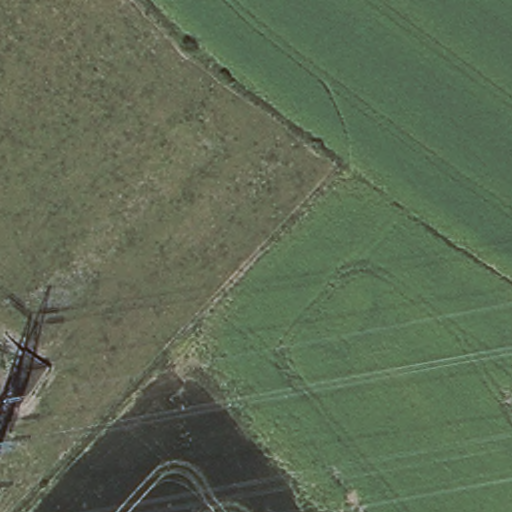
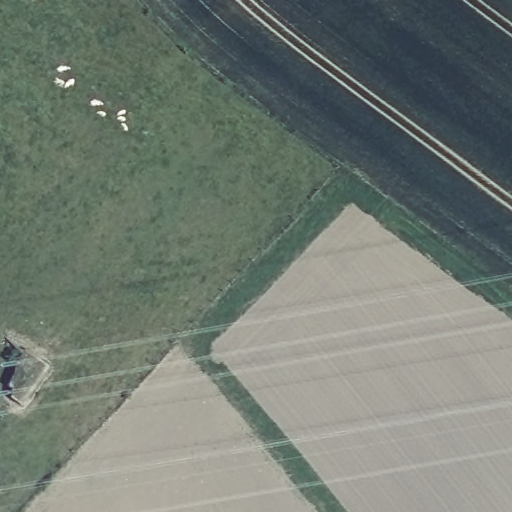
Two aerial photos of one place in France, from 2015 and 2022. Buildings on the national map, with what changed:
unchanged [(20,408),(9,401),(11,391),(4,386),(14,356),(0,349),(0,348),(7,336),(44,365),(20,408)]

